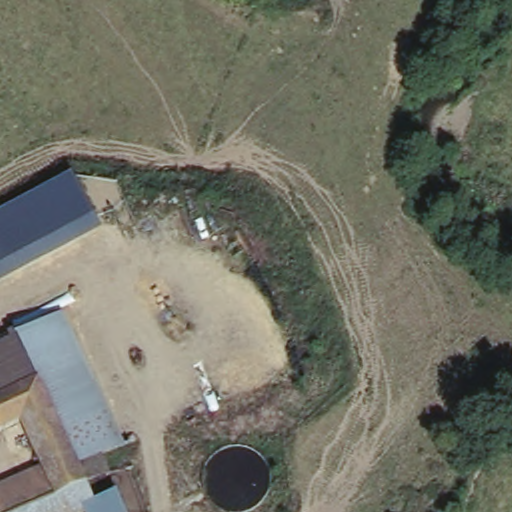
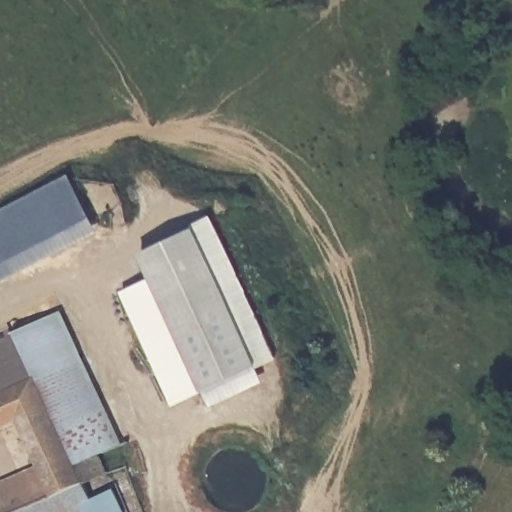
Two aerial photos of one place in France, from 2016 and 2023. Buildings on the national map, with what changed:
unchanged [(66,177),(100,235),(0,283),(0,212),(66,177)]
new [(201,237),(198,231),(217,222),(283,367),(206,400),(145,261),(201,237)]
unchanged [(60,316),(127,450),(76,466),(92,501),(115,491),(125,512),(0,512),(0,481),(38,466),(17,423),(0,430),(0,345),(60,316)]

